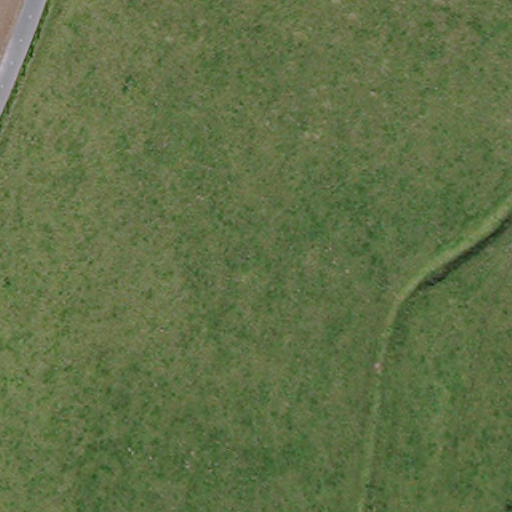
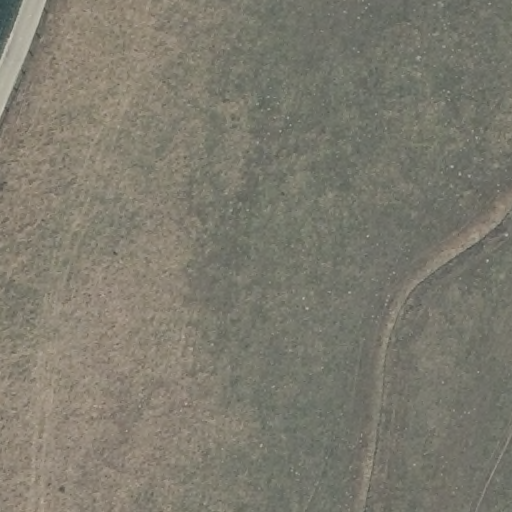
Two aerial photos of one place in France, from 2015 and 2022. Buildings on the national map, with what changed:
[]

